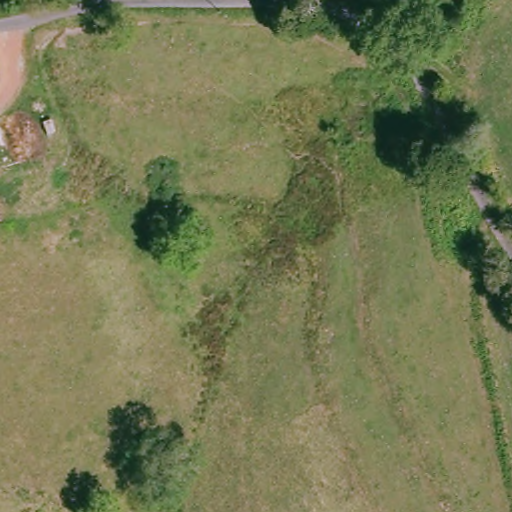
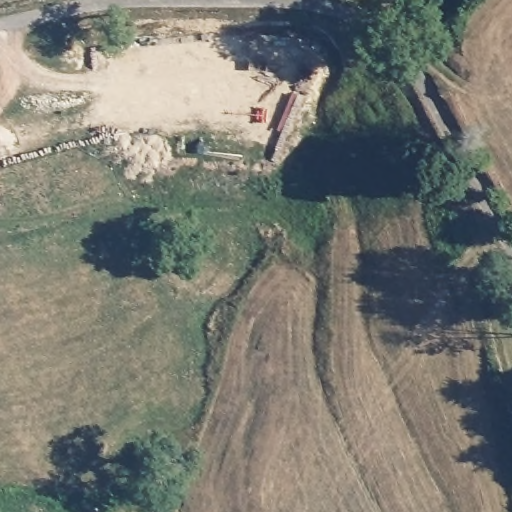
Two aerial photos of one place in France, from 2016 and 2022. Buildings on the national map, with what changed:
[]

